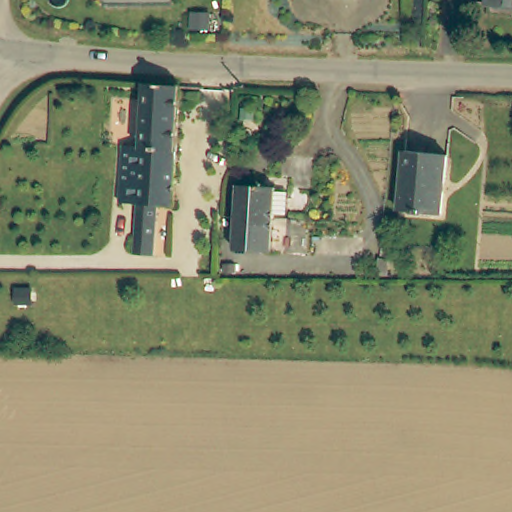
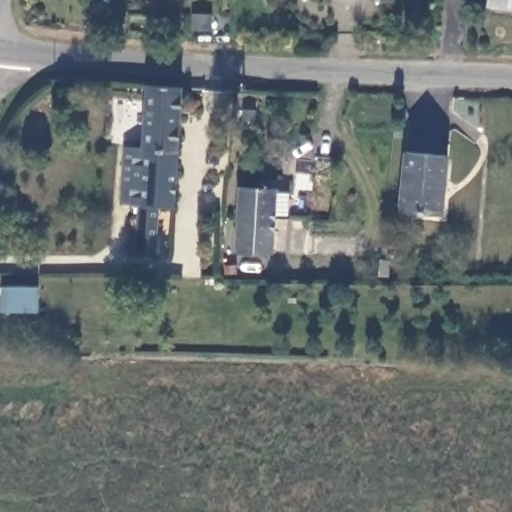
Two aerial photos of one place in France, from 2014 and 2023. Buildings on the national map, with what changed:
unchanged [(498,6),(498,9),(496,9),(496,0),(512,0),(512,7),(498,6)]
demolished [(190,24),(172,23),(174,7),(192,9),(190,24)]
unchanged [(213,31),(195,29),(197,14),(215,16),(213,31)]
unchanged [(177,207),(162,206),(159,256),(138,254),(142,204),(124,203),(129,145),(146,147),(152,84),(187,87),(177,207)]
unchanged [(450,155),(443,214),(402,210),(408,151),(450,155)]
unchanged [(243,188),(278,190),(278,196),(291,196),(290,220),(277,220),(242,219),(243,188)]
unchanged [(276,252),(240,251),(242,219),(277,220),(276,252)]
new [(40,286),(40,313),(10,313),(5,313),(4,287),(9,286),(40,286)]

